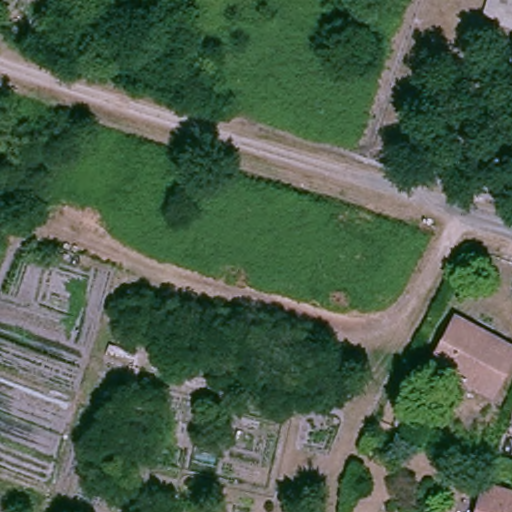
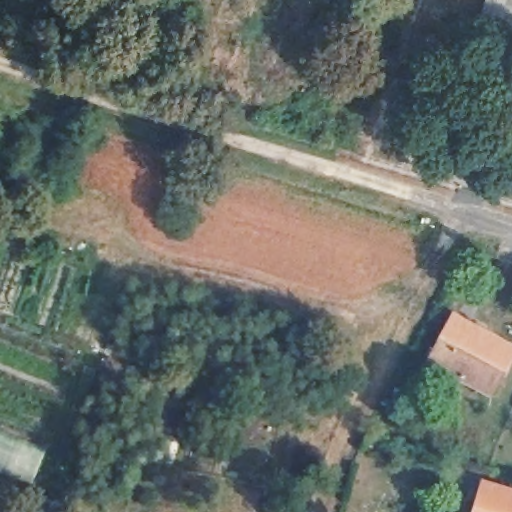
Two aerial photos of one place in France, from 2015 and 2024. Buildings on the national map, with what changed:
unchanged [(512,0),(512,21),(482,10),(486,0),(512,0)]
unchanged [(432,361),(451,326),(457,314),(501,340),(512,346),(512,360),(492,395),(432,361)]
new [(14,429),(48,445),(32,487),(0,476),(0,424),(14,429)]
unchanged [(483,483),(512,491),(512,512),(474,512),(483,483)]

